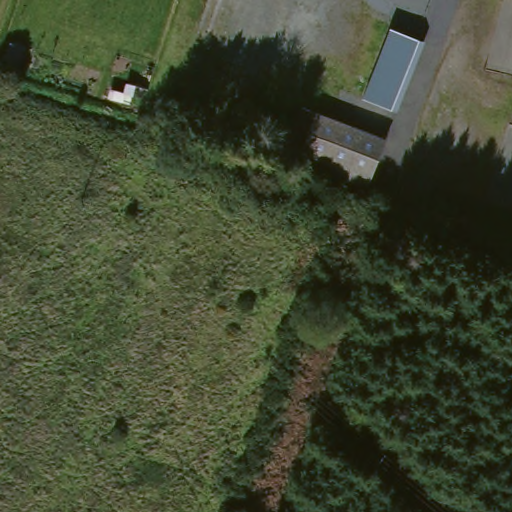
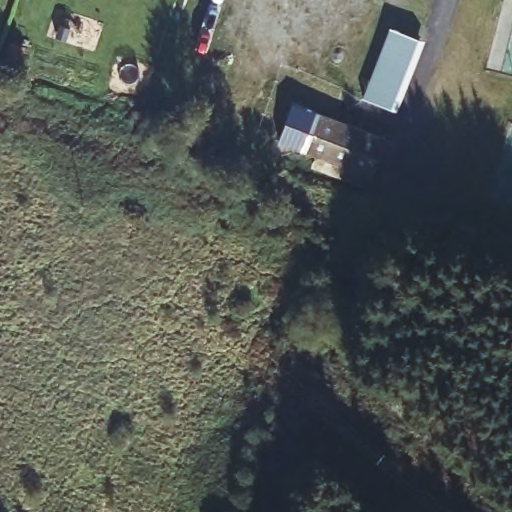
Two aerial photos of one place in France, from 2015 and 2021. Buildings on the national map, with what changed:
unchanged [(394,38),(423,50),(398,109),(368,96),(394,38)]
unchanged [(321,108),(391,138),(370,187),(299,156),(321,108)]

